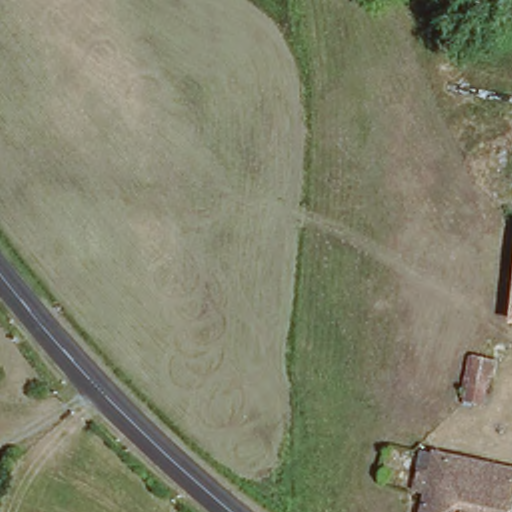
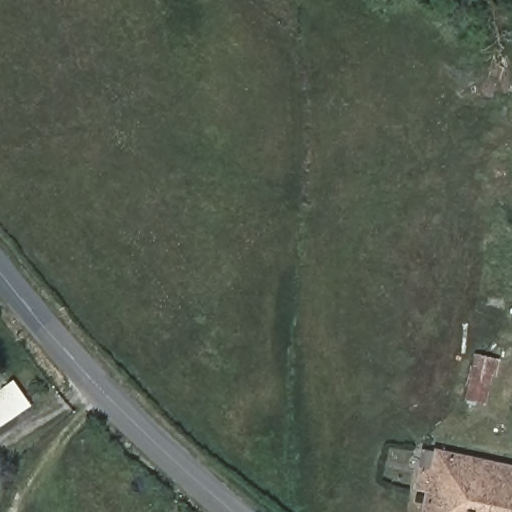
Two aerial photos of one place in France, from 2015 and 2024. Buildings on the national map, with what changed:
unchanged [(475,362),(491,367),(484,396),(465,392),(475,362)]
new [(0,390),(15,381),(31,408),(0,426),(0,390)]
unchanged [(512,462),(512,507),(511,512),(425,512),(442,441),(512,462)]

